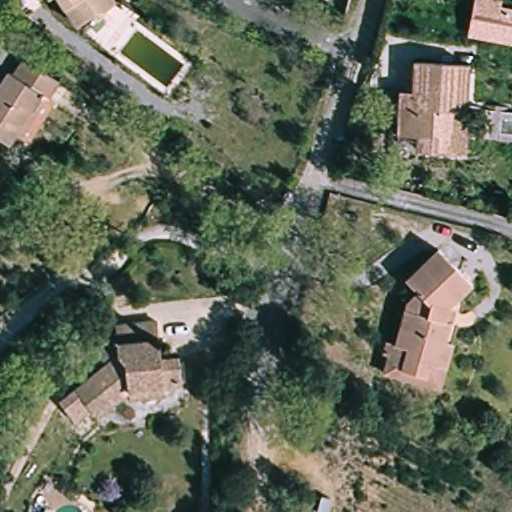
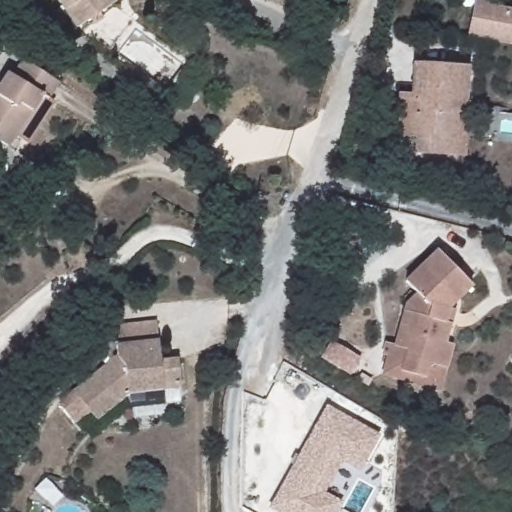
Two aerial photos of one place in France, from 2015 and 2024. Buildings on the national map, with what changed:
unchanged [(114,2),(77,27),(58,0),(112,0),(114,2)]
unchanged [(512,11),(512,45),(476,37),(483,5),(512,11)]
unchanged [(7,33),(32,51),(27,59),(2,42),(7,33)]
unchanged [(467,65),(463,156),(420,153),(421,138),(396,136),(398,107),(410,108),(413,62),(467,65)]
unchanged [(25,148),(15,141),(7,151),(0,147),(0,89),(7,77),(12,80),(22,64),(57,86),(47,102),(53,105),(25,148)]
new [(342,230),(366,237),(359,266),(334,260),(342,230)]
unchanged [(401,374),(389,370),(390,367),(397,342),(394,341),(406,298),(416,288),(404,276),(437,245),(471,280),(448,302),(444,316),(449,318),(444,337),(451,339),(444,363),(438,384),(401,374)]
unchanged [(134,399),(132,389),(97,413),(68,383),(117,350),(111,320),(159,319),(167,358),(187,357),(193,387),(172,388),(174,398),(134,399)]
new [(327,405),(380,435),(359,471),(342,462),(325,490),(343,503),(338,512),(276,512),(268,508),(327,405)]

